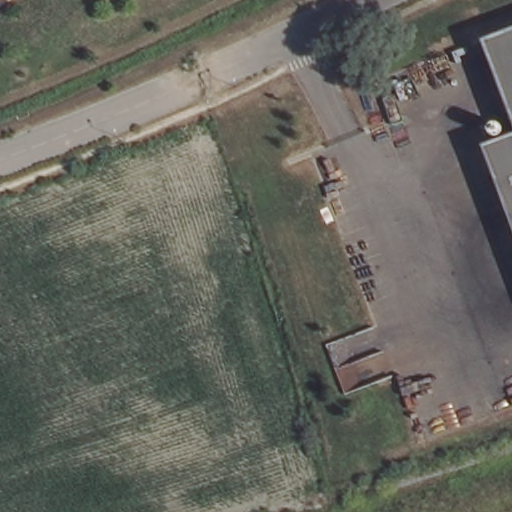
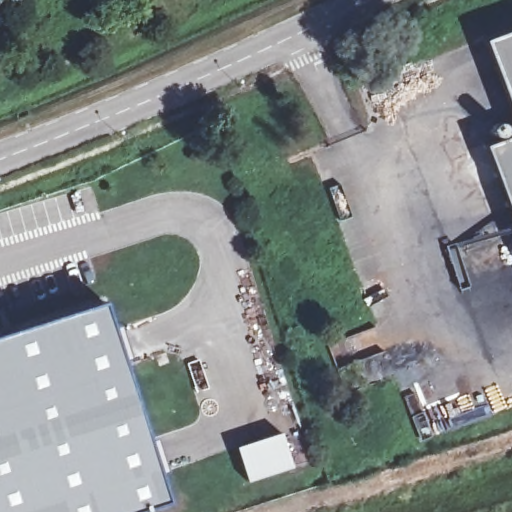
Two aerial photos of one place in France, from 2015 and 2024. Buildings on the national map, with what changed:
unchanged [(512,32),(512,134),(479,45),(512,32)]
unchanged [(512,137),(512,239),(479,150),(512,137)]
new [(102,303),(166,500),(128,512),(0,512),(0,336),(102,303)]
new [(282,433),(293,467),(247,482),(237,447),(282,433)]

